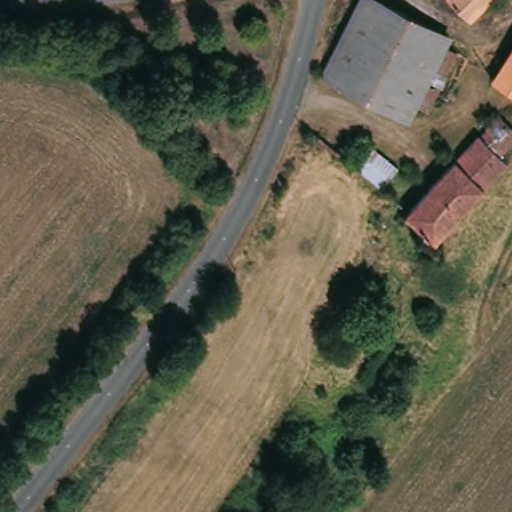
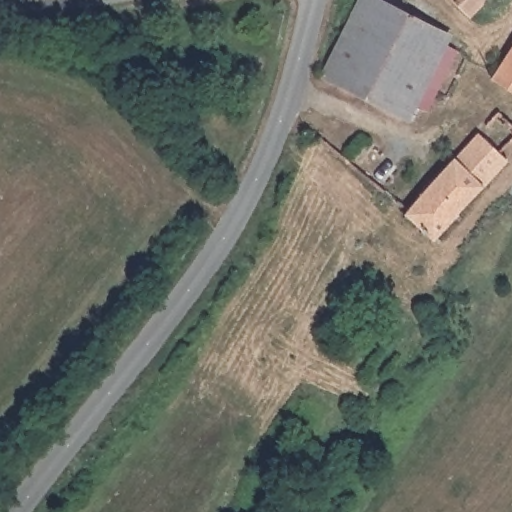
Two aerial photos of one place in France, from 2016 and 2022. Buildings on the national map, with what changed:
unchanged [(377,0),(441,33),(437,41),(448,47),(417,105),(407,100),(397,116),(320,74),(360,0),(377,0)]
unchanged [(461,0),(485,0),(472,13),(461,0)]
unchanged [(487,0),(508,0),(497,10),(487,0)]
unchanged [(512,87),(497,76),(512,56),(512,87)]
unchanged [(512,114),(512,156),(465,205),(430,241),(404,216),(406,214),(497,118),(504,123),(512,114)]
unchanged [(381,194),(355,171),(372,149),(398,170),(381,194)]

